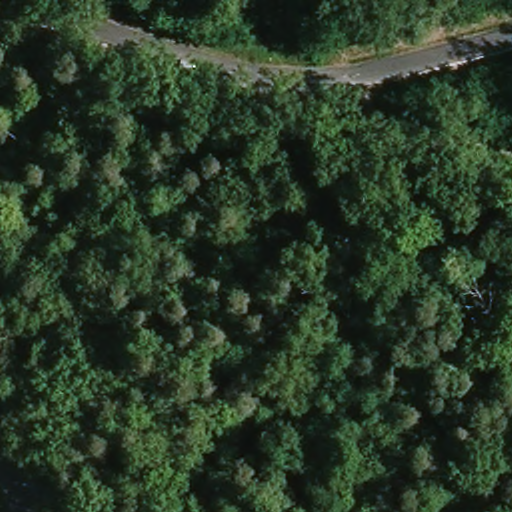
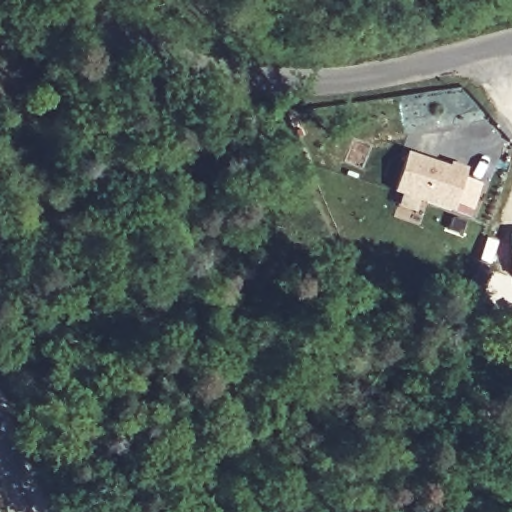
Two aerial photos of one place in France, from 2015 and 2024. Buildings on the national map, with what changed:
new [(406,154),(449,167),(450,163),(467,169),(452,215),(392,195),(406,154)]
new [(510,235),(512,234),(512,261),(510,235)]

